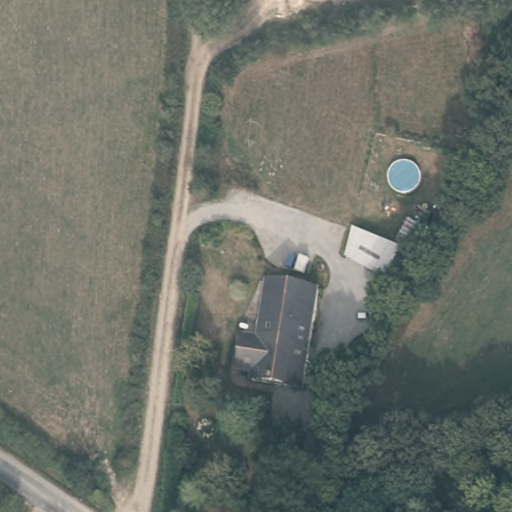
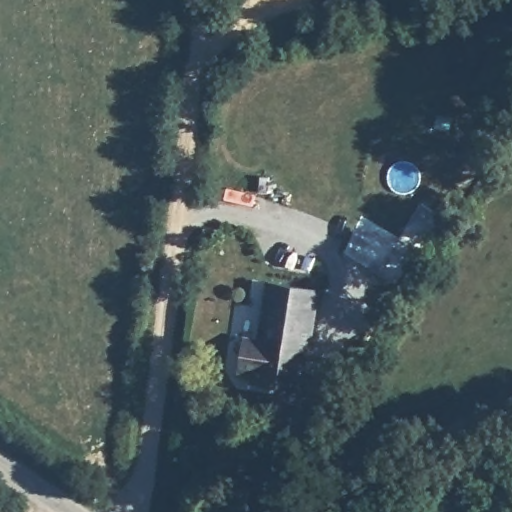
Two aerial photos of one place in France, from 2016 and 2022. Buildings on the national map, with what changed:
unchanged [(356,228),(394,245),(400,239),(420,206),(435,215),(427,229),(433,233),(410,273),(399,289),(350,257),(356,228)]
unchanged [(246,338),(259,339),(270,284),(317,291),(302,389),(252,382),(252,373),(241,372),(246,338)]

